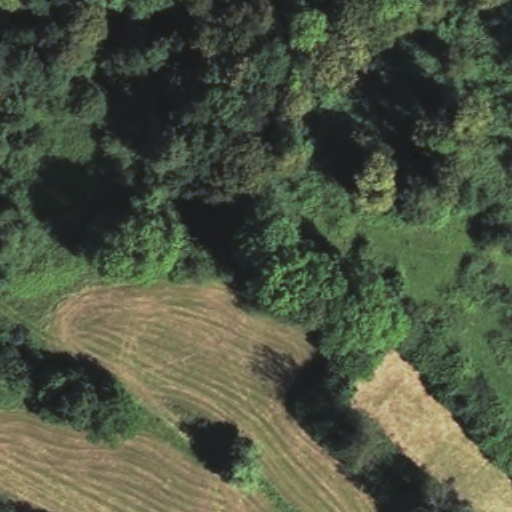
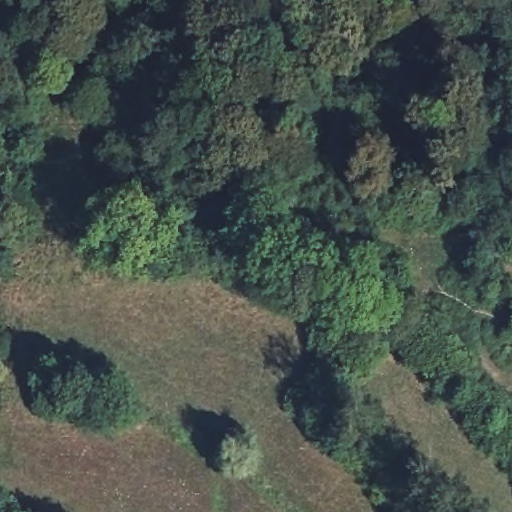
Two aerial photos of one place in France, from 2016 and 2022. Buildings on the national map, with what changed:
[]

